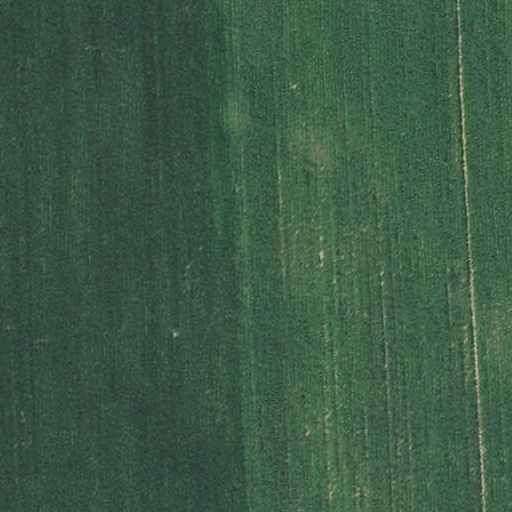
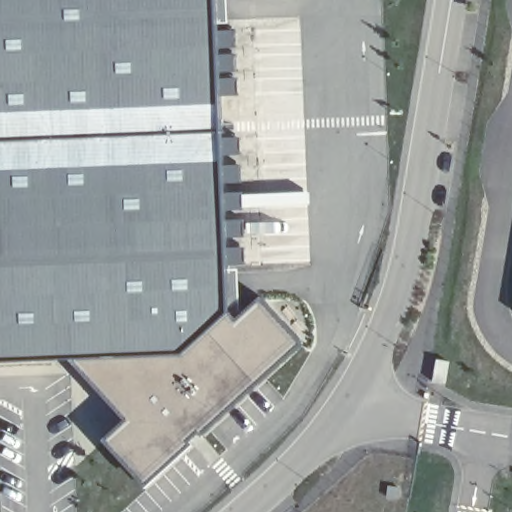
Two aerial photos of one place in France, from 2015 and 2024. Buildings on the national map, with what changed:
new [(229,312),(183,353),(0,361),(0,0),(217,0),(229,312)]

